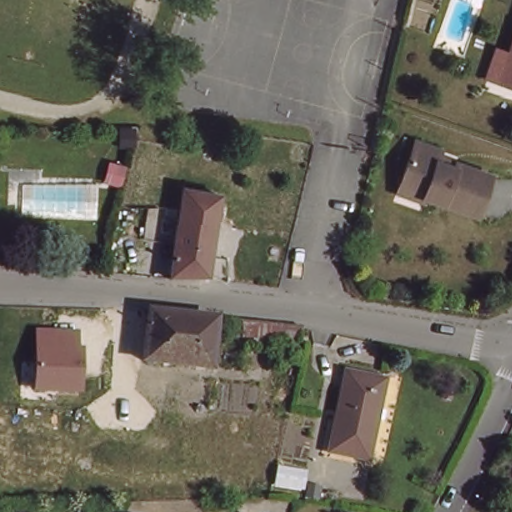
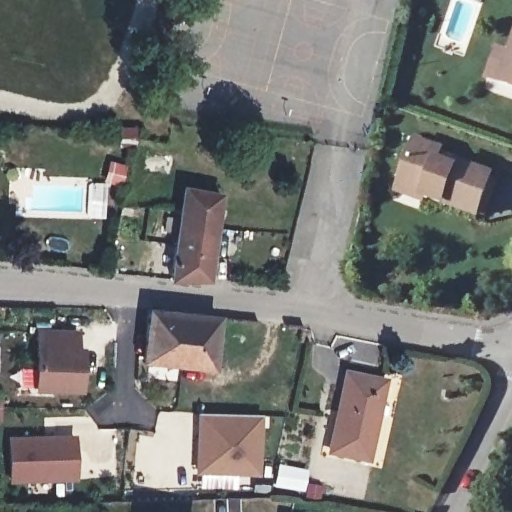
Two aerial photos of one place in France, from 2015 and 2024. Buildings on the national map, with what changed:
unchanged [(512,45),(512,86),(499,81),(512,45)]
unchanged [(397,191),(400,181),(415,141),(440,151),(438,157),(455,164),(490,175),(477,215),(422,196),(421,200),(397,191)]
unchanged [(120,185),(107,182),(112,162),(125,166),(120,185)]
unchanged [(220,193),(217,208),(207,278),(171,278),(183,186),(205,190),(220,193)]
unchanged [(143,359),(148,310),(217,317),(212,367),(143,359)]
unchanged [(77,330),(75,347),(82,347),(80,394),(33,391),(35,328),(77,330)]
unchanged [(368,458),(330,450),(346,372),(384,380),(368,458)]
new [(195,474),(197,413),(261,415),(258,476),(195,474)]
new [(9,484),(7,436),(73,433),(75,481),(9,484)]
demolished [(151,485),(130,483),(131,466),(132,466),(152,468),(151,485)]
unchanged [(277,467),(302,472),(299,487),(275,482),(277,467)]
demolished [(138,498),(128,498),(128,495),(128,492),(138,491),(138,498)]
unchanged [(114,512),(92,512),(92,502),(115,502),(114,512)]

